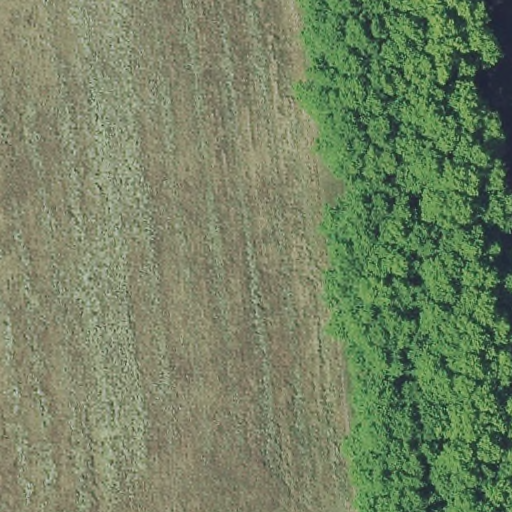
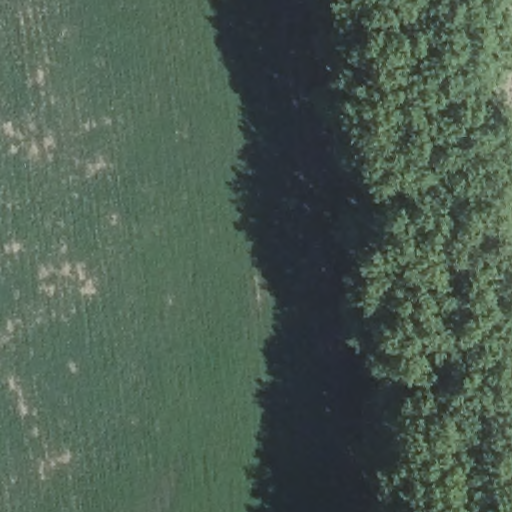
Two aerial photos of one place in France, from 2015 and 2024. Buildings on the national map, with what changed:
[]

